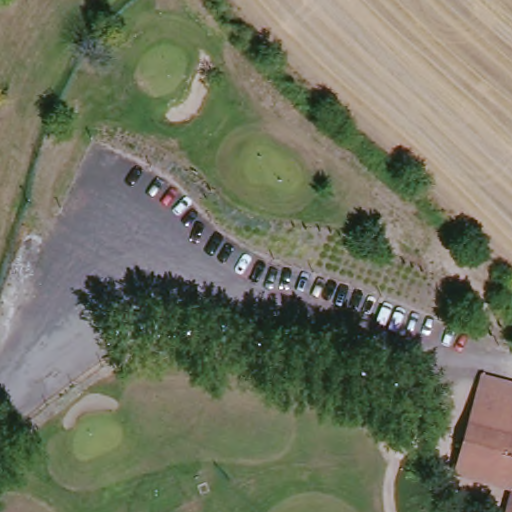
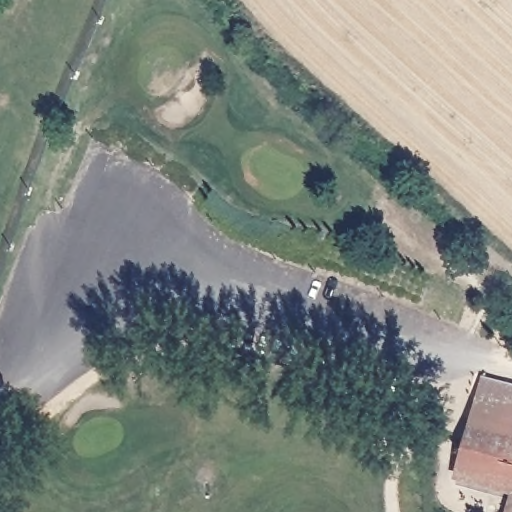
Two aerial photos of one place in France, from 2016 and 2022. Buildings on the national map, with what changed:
unchanged [(503,422),(512,425),(512,512),(502,512),(508,488),(453,471),(478,393),(508,402),(503,422)]

